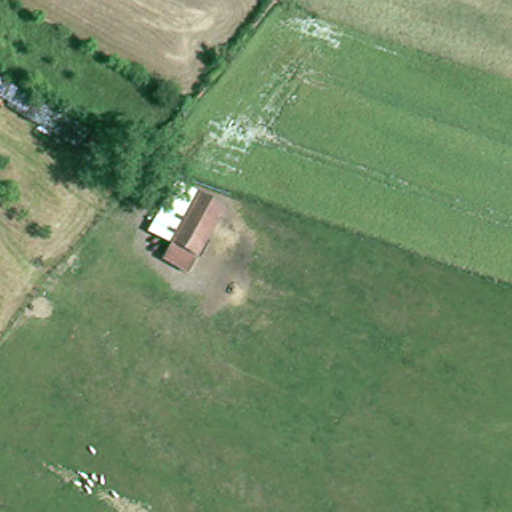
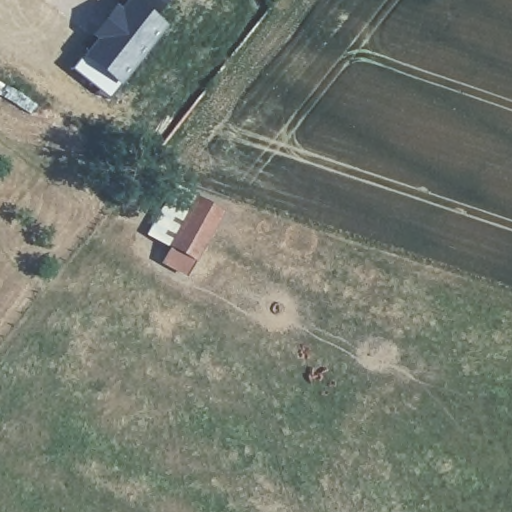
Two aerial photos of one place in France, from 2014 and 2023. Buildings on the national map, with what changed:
new [(149,17),(164,28),(122,84),(85,59),(102,39),(95,35),(107,18),(114,22),(129,3),(125,0),(162,0),(149,17)]
unchanged [(224,211),(185,282),(159,263),(197,199),(224,211)]

